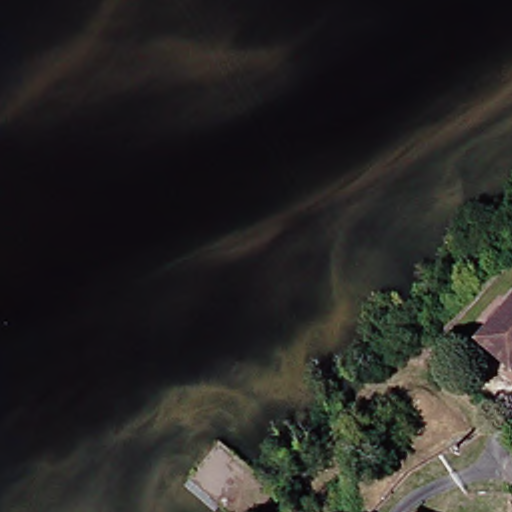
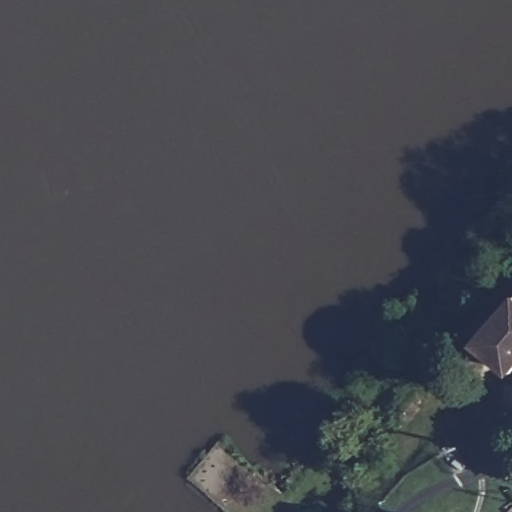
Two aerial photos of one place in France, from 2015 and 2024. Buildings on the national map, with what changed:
unchanged [(477,353),(490,337),(484,332),(495,319),(502,324),(512,312),(512,384),(477,353)]

